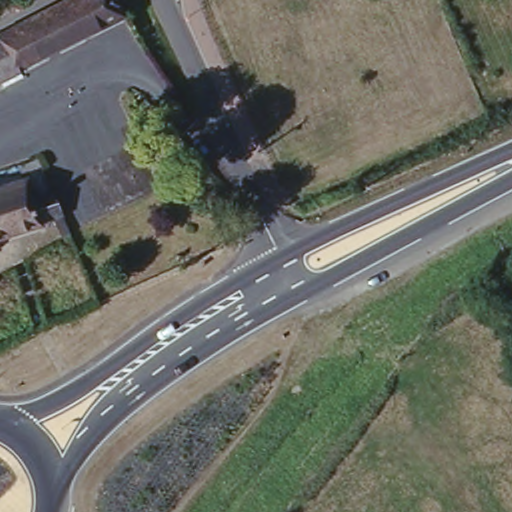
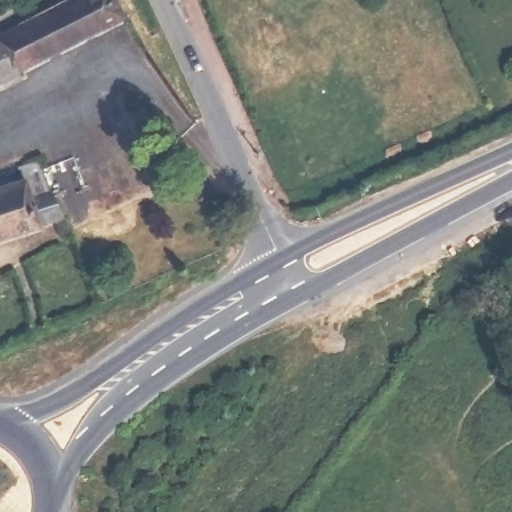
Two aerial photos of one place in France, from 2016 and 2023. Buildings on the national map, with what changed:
unchanged [(121,11),(16,67),(18,72),(0,81),(0,30),(54,0),(115,0),(121,11)]
unchanged [(0,248),(0,199),(29,189),(36,204),(57,197),(68,222),(0,248)]

